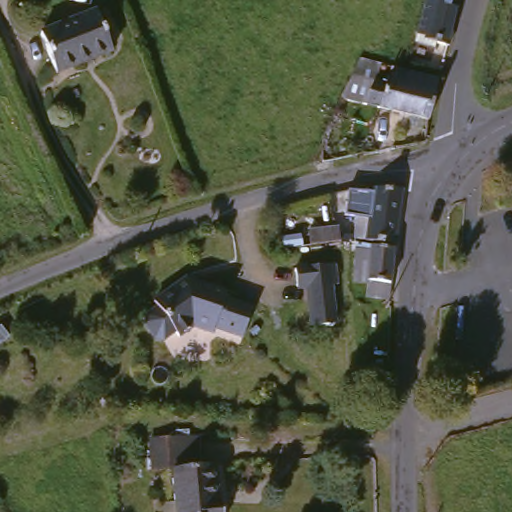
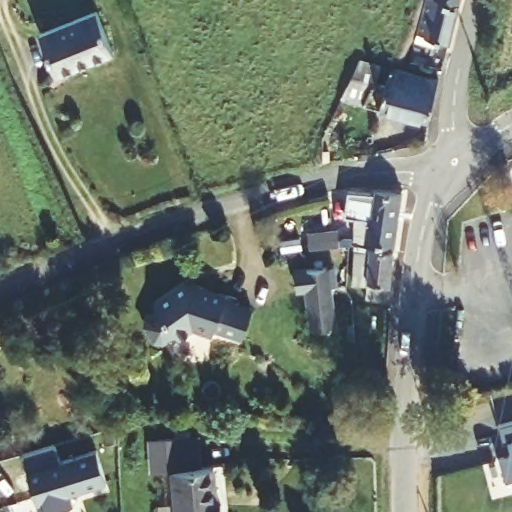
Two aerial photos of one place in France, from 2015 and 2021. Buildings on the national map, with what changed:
unchanged [(448,48),(422,40),(431,0),(458,6),(448,48)]
unchanged [(100,9),(118,51),(58,77),(40,36),(100,9)]
unchanged [(373,49),(370,67),(363,115),(344,113),(353,46),(373,49)]
unchanged [(428,73),(451,75),(441,124),(363,115),(370,67),(391,69),(428,73)]
unchanged [(359,143),(364,160),(348,165),(350,146),(359,143)]
unchanged [(390,287),(348,281),(356,221),(338,217),(344,189),(408,194),(390,287)]
unchanged [(328,232),(328,244),(298,245),(298,231),(328,232)]
unchanged [(326,268),(338,328),(318,332),(309,290),(298,292),(294,274),(306,272),(326,268)]
unchanged [(230,292),(228,298),(261,308),(251,338),(220,329),(218,333),(198,328),(183,338),(180,334),(162,347),(144,322),(161,309),(158,304),(191,282),(230,292)]
unchanged [(172,464),(153,464),(153,433),(196,433),(197,463),(210,463),(211,498),(223,498),(223,512),(173,512),(172,464)]
new [(50,512),(39,512),(22,454),(54,444),(59,459),(98,449),(106,483),(69,494),(73,505),(50,512)]

